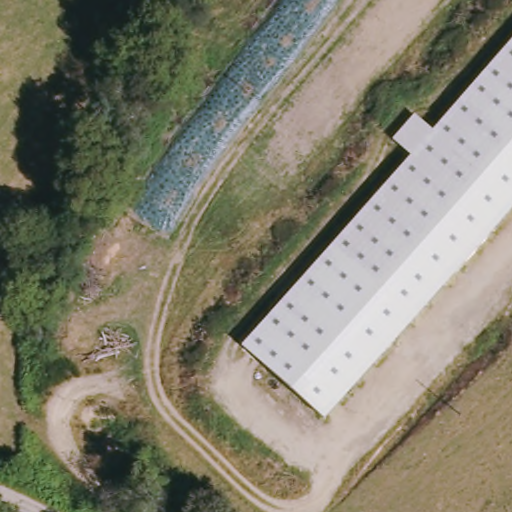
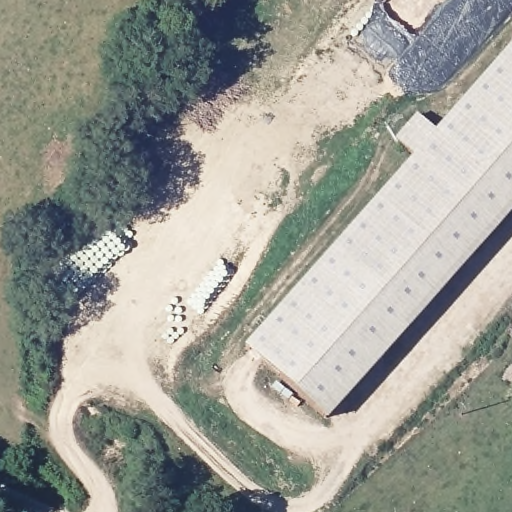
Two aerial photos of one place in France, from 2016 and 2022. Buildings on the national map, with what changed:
unchanged [(393,140),(415,116),(433,132),(512,43),(512,212),(327,422),(244,347),(411,157),(393,140)]
unchanged [(56,311),(27,312),(27,299),(37,276),(56,287),(56,311)]

